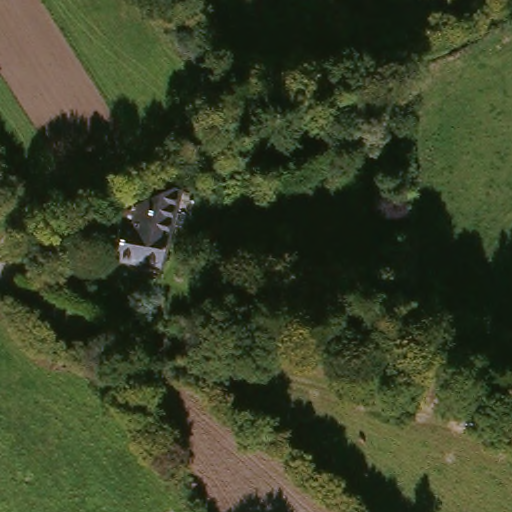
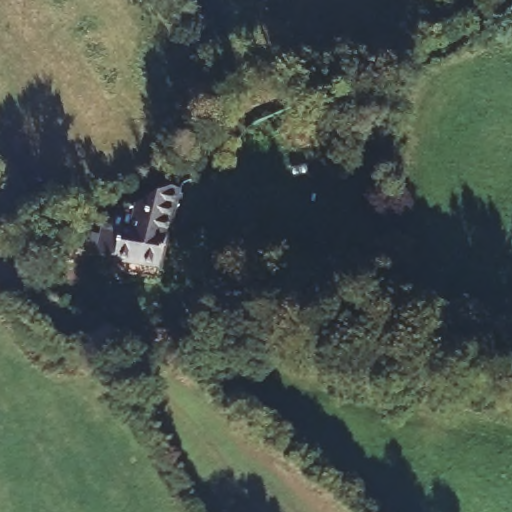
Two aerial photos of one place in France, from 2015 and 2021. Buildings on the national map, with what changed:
unchanged [(162,275),(103,257),(112,227),(141,237),(148,212),(174,217),(167,245),(171,246),(162,275)]

